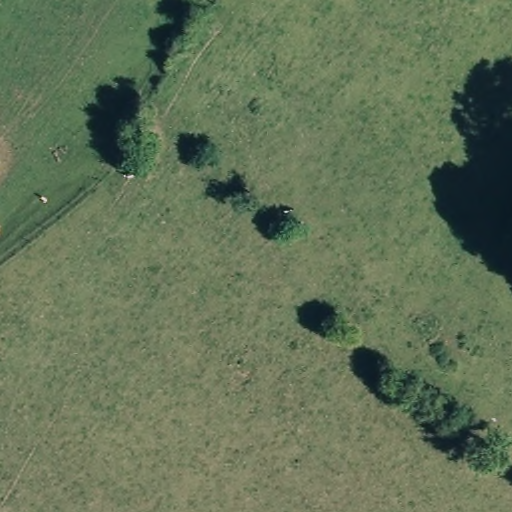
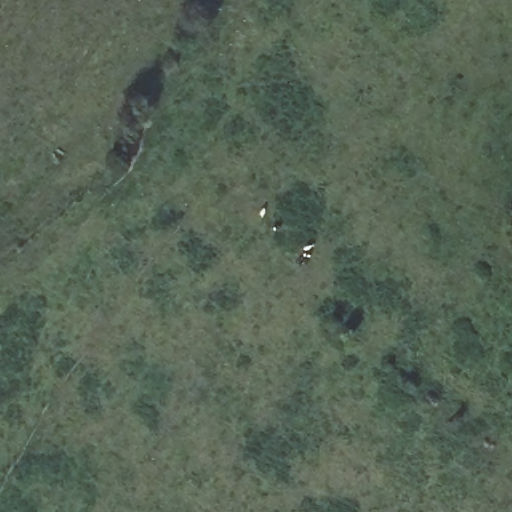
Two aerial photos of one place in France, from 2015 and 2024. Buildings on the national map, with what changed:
[]

